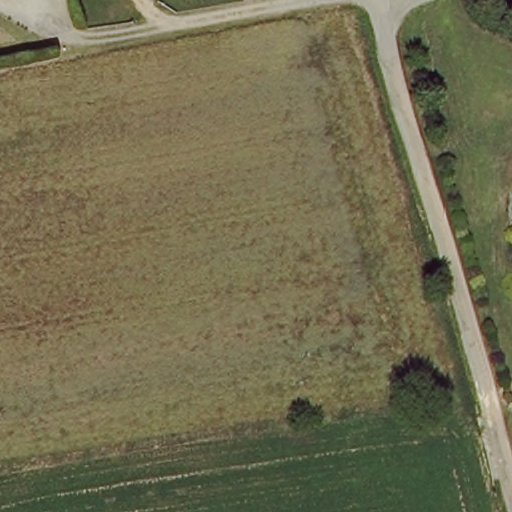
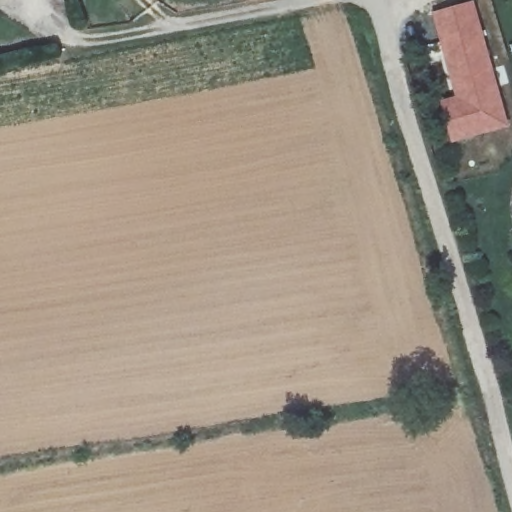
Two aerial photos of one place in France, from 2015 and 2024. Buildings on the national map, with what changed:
new [(475,0),(510,126),(449,144),(438,100),(453,95),(431,11),(471,0),(475,0)]

